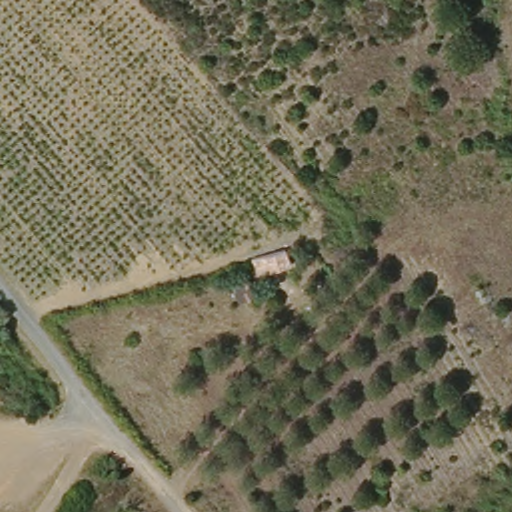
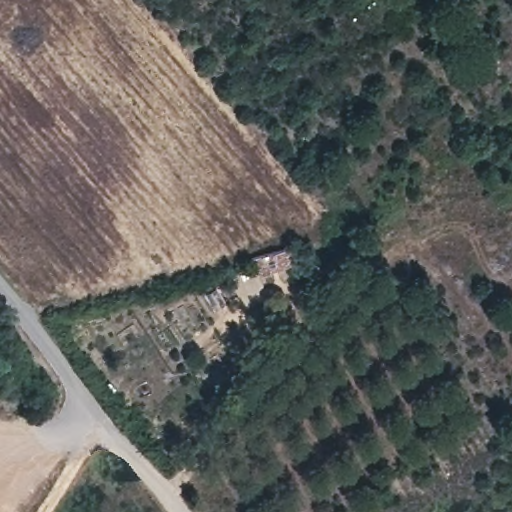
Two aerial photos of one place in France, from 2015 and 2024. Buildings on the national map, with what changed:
unchanged [(253,272),(247,257),(282,248),(289,261),(253,272)]

